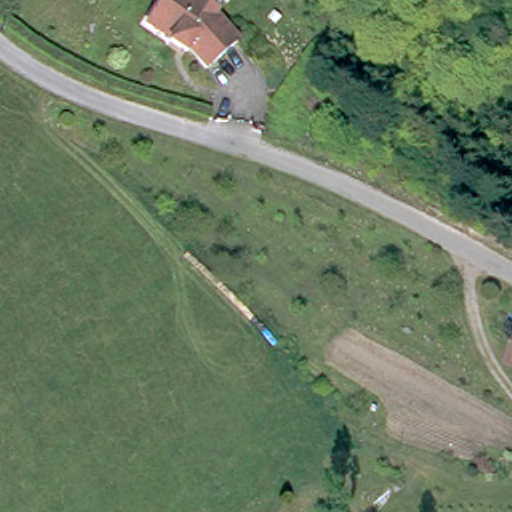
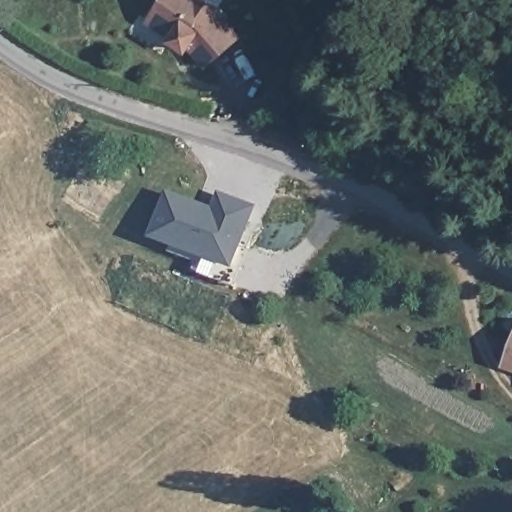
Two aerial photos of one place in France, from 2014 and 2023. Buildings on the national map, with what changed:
unchanged [(238,34),(202,47),(198,33),(194,37),(178,24),(180,22),(157,3),(160,0),(226,0),(238,34)]
new [(218,190),(257,206),(234,269),(150,238),(167,190),(213,207),(218,190)]

